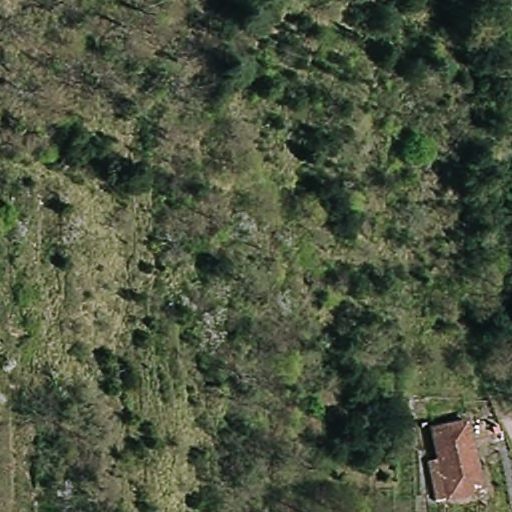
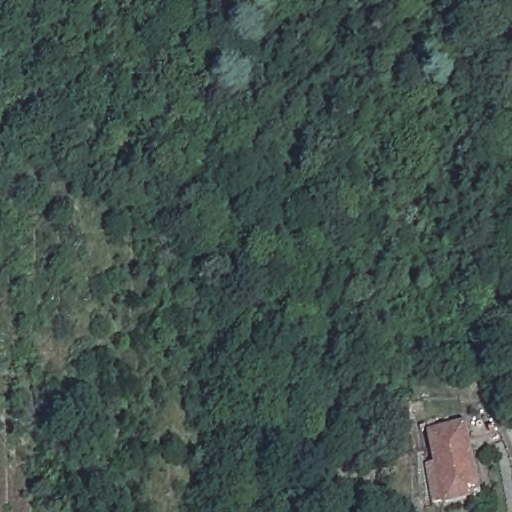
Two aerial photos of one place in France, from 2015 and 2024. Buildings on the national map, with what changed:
unchanged [(442,504),(433,425),(468,422),(477,500),(442,504)]

